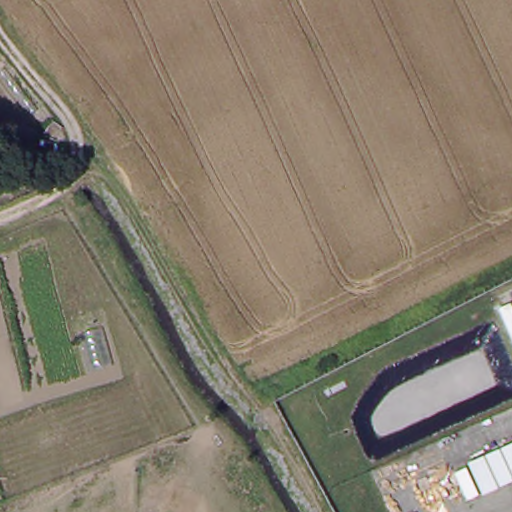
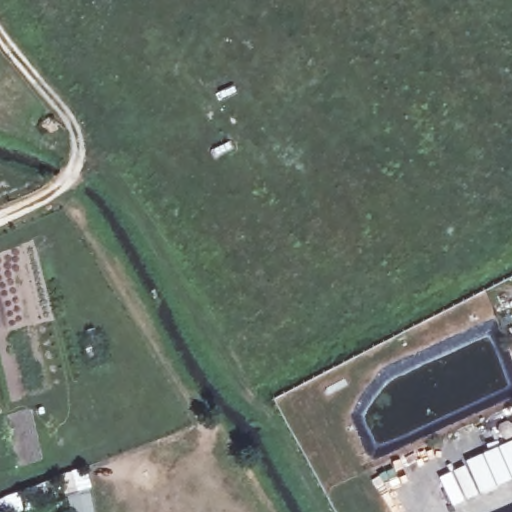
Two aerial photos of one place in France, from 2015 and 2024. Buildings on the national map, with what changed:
unchanged [(512,481),(485,493),(473,463),(512,447),(512,481)]

